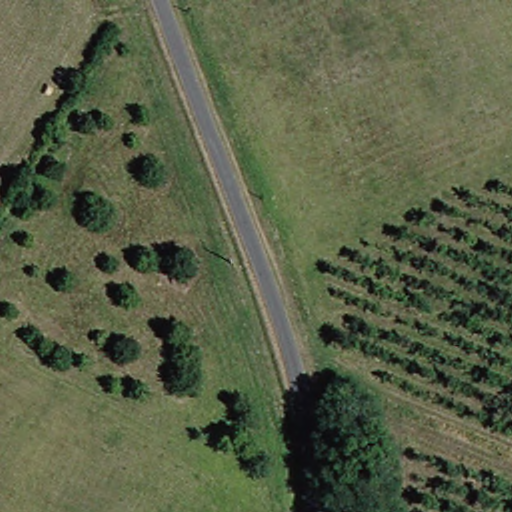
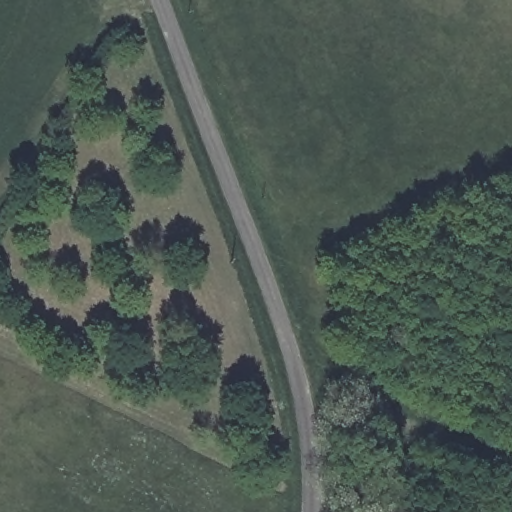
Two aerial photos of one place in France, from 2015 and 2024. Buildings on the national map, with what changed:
[]

